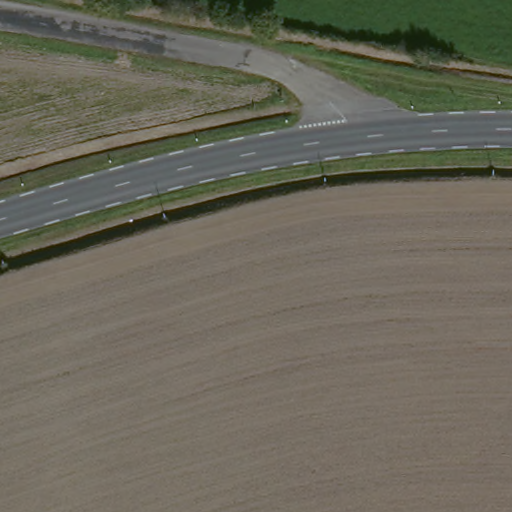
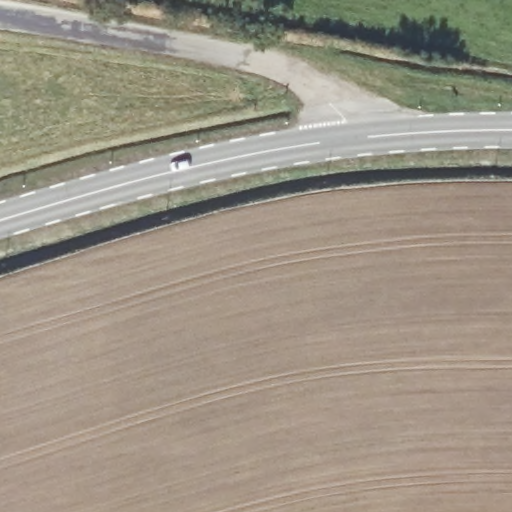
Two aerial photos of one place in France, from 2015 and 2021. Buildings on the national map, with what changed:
[]

